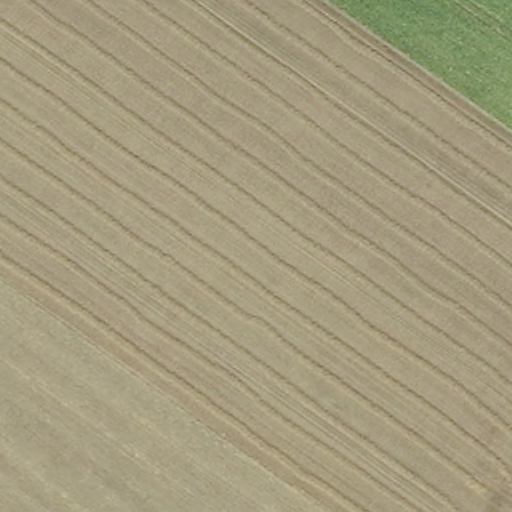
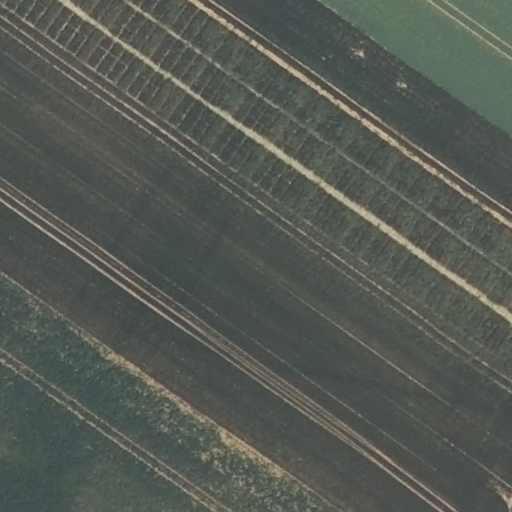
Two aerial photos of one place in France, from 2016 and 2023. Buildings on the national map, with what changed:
[]

